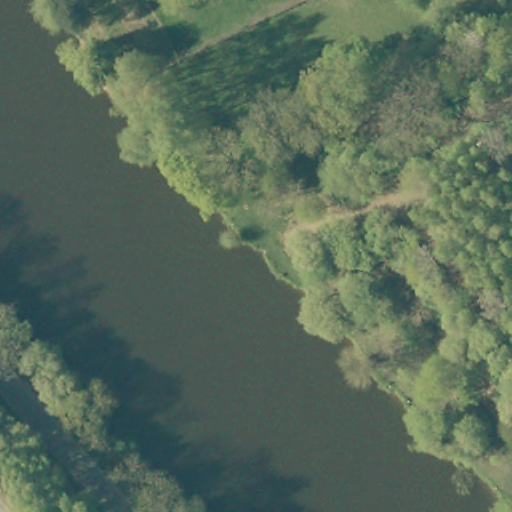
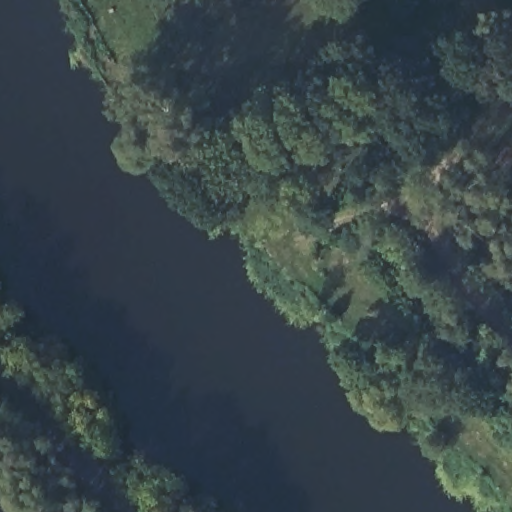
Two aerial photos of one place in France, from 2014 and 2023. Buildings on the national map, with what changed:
[]

